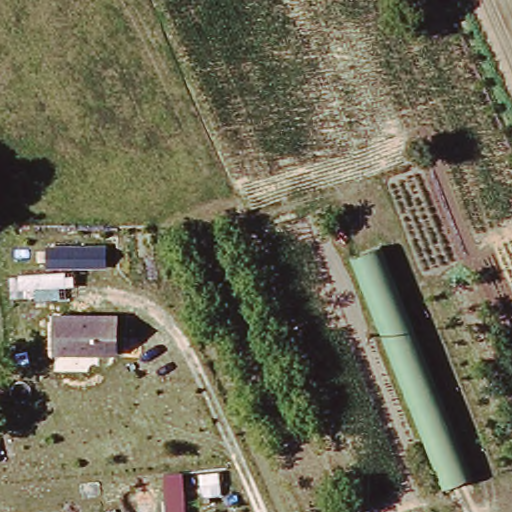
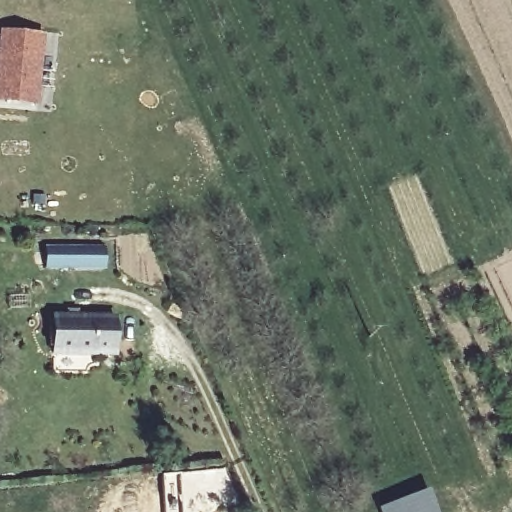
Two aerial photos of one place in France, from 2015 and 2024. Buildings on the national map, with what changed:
new [(39,106),(0,102),(0,30),(45,34),(39,106)]
unchanged [(105,245),(106,267),(46,267),(45,246),(105,245)]
demolished [(449,491),(355,265),(386,252),(477,478),(449,491)]
unchanged [(116,315),(116,355),(53,353),(52,315),(116,315)]
unchanged [(182,472),(184,512),(164,512),(162,473),(182,472)]
new [(434,491),(442,512),(386,512),(385,510),(434,491)]

